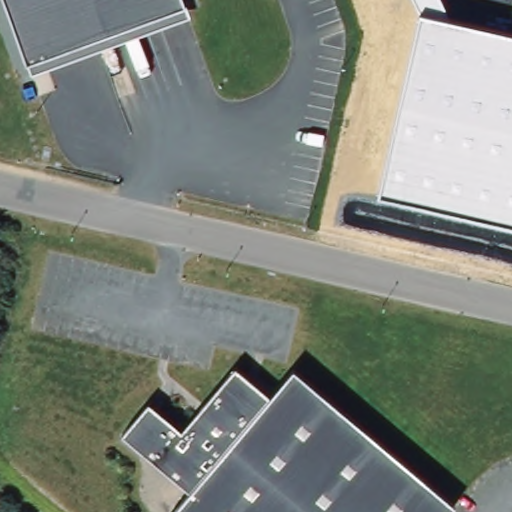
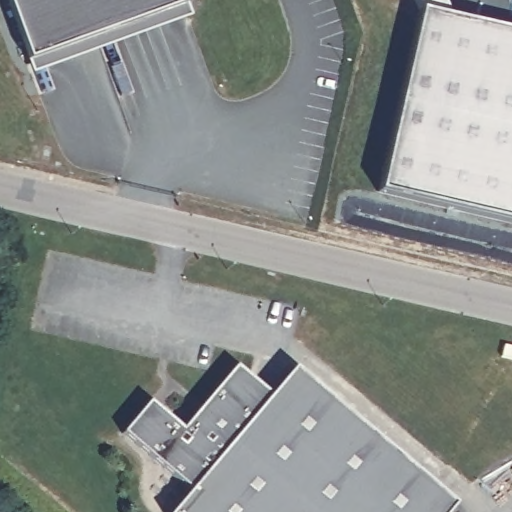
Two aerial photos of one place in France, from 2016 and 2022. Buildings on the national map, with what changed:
unchanged [(189,14),(31,72),(4,0),(184,0),(189,14)]
unchanged [(452,20),(512,34),(512,224),(377,192),(421,11),(415,0),(442,0),(452,20)]
unchanged [(118,435),(147,400),(180,428),(235,362),(270,391),(291,365),(452,500),(443,512),(169,512),(186,491),(118,435)]

